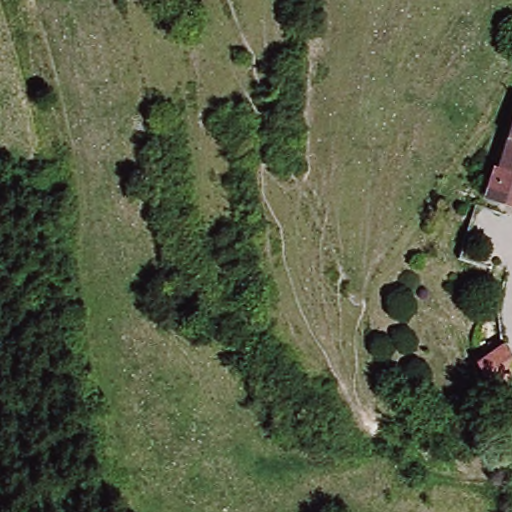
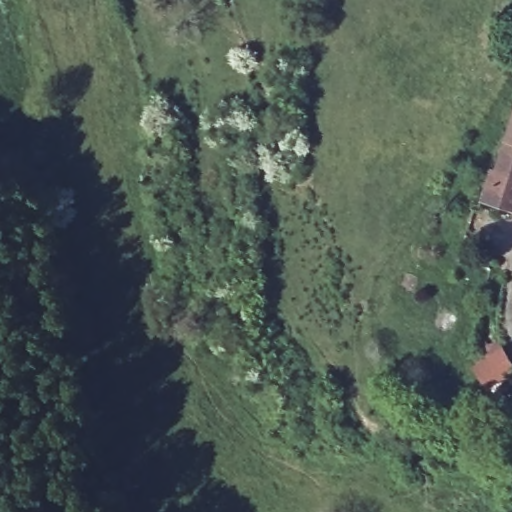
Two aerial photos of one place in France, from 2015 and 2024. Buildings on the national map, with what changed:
unchanged [(509,104),(512,105),(512,201),(485,194),(509,104)]
unchanged [(484,354),(476,355),(474,347),(483,345),(484,354)]
unchanged [(487,389),(474,363),(501,350),(512,372),(512,376),(496,384),(487,389)]

